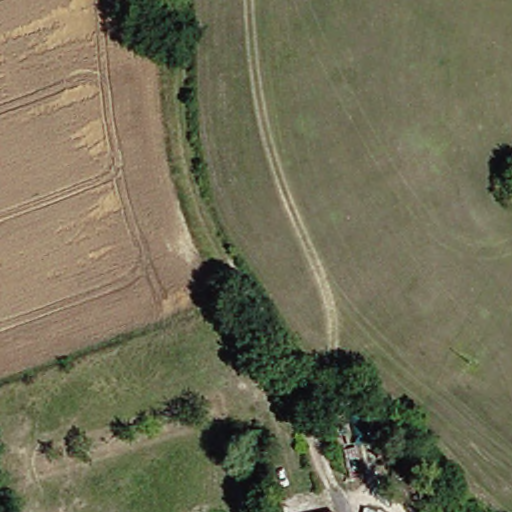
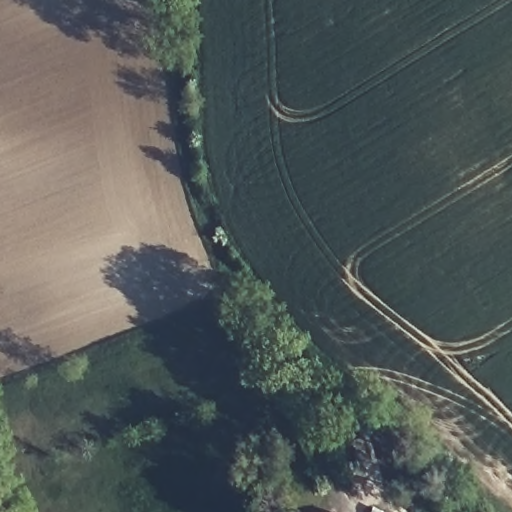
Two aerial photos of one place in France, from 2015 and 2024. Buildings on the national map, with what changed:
unchanged [(336,512),(335,512),(336,511),(336,512)]

